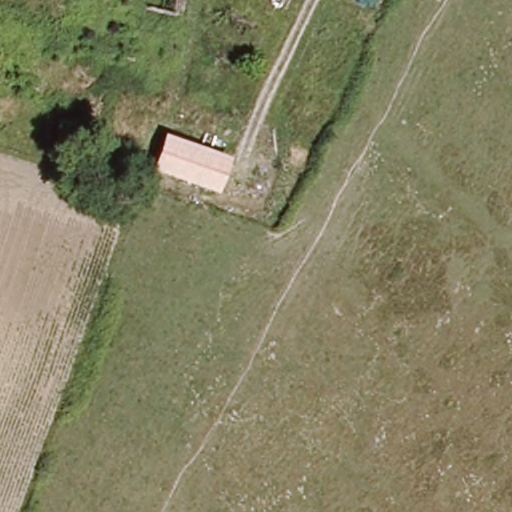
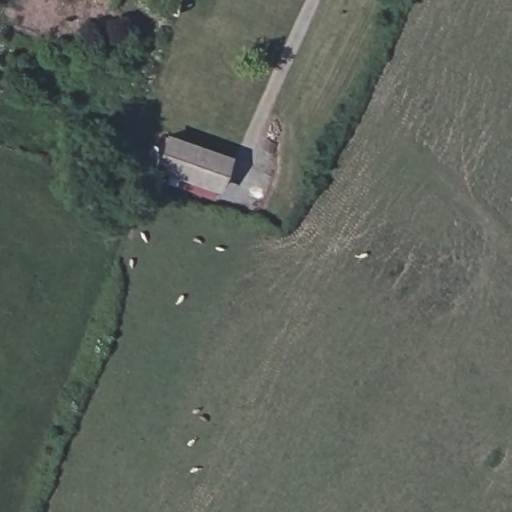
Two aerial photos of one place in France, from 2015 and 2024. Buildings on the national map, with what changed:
unchanged [(145,5),(146,0),(181,0),(177,14),(145,5)]
unchanged [(170,135),(225,159),(212,187),(157,164),(170,135)]

